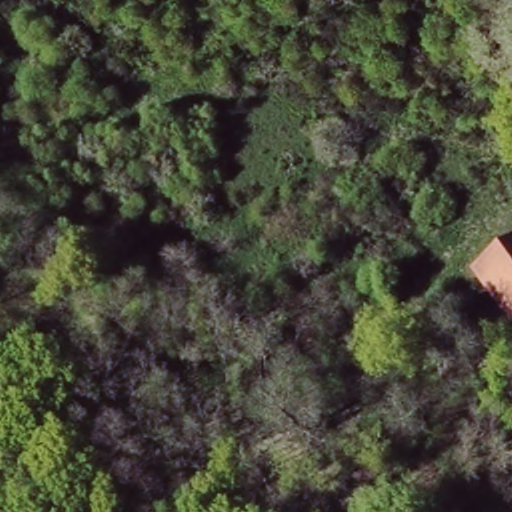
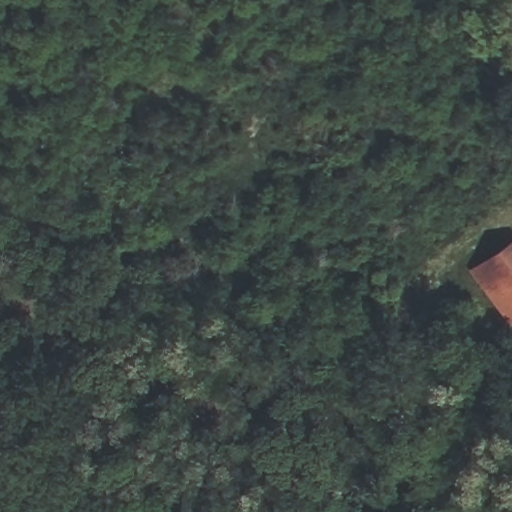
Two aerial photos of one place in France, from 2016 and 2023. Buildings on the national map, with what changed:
unchanged [(512,240),(512,308),(479,269),(512,240)]

